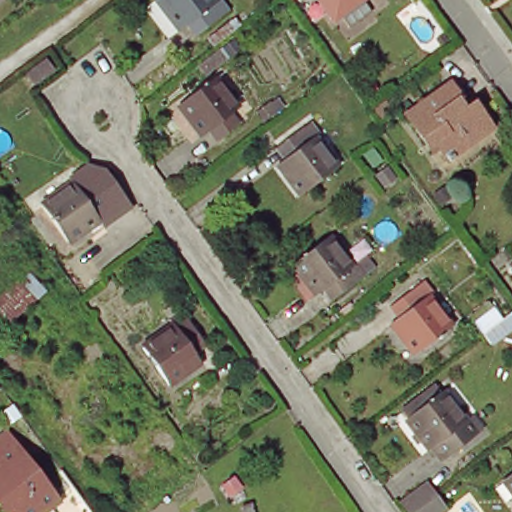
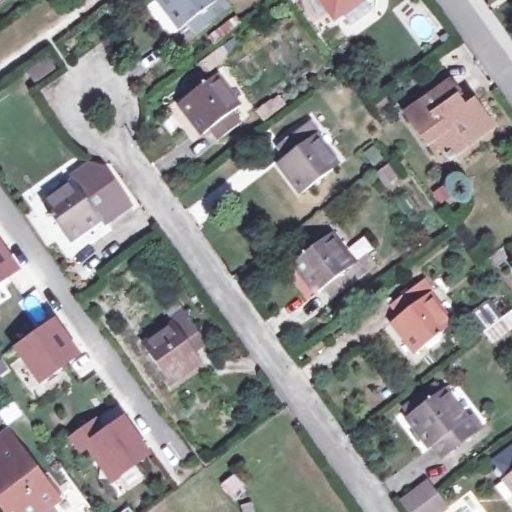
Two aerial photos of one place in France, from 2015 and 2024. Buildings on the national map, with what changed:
unchanged [(181,29),(159,0),(216,0),(217,1),(218,0),(223,0),(231,11),(196,36),(187,23),(181,29)]
unchanged [(352,30),(343,19),(337,23),(321,0),(370,0),(365,3),(374,14),(352,30)]
unchanged [(207,124),(185,93),(220,67),(243,97),(237,101),(247,113),(222,131),(213,119),(207,124)]
unchanged [(435,151),(407,112),(452,82),(462,96),(458,98),(465,107),(476,100),(496,128),(452,159),(442,146),(435,151)]
unchanged [(295,162),(287,151),(321,126),(330,137),(325,140),(348,172),(312,199),(288,166),(295,162)]
new [(97,211),(108,203),(83,168),(72,176),(70,173),(87,162),(105,167),(132,207),(105,226),(102,216),(97,211)]
unchanged [(68,240),(42,203),(75,180),(72,176),(83,168),(108,203),(97,211),(102,216),(68,240)]
unchanged [(325,229),(349,260),(353,257),(363,249),(372,262),(362,269),(327,295),(320,284),(312,289),(289,256),(325,229)]
new [(0,285),(0,243),(20,271),(0,285)]
unchanged [(410,322),(400,309),(434,284),(443,297),(439,299),(462,331),(426,357),(403,326),(410,322)]
unchanged [(192,362),(197,369),(165,392),(138,355),(170,333),(166,326),(162,320),(173,312),(177,318),(204,353),(192,362)]
new [(54,318),(80,355),(38,386),(12,348),(54,318)]
unchanged [(432,448),(408,415),(445,388),(467,420),(472,416),(482,428),(445,455),(437,444),(432,448)]
new [(66,438),(95,418),(102,430),(123,416),(151,456),(118,477),(109,484),(86,450),(78,455),(66,438)]
unchanged [(0,467),(0,442),(16,430),(67,499),(49,512),(24,512),(12,495),(5,500),(0,492),(0,474),(3,471),(0,467)]
new [(493,461),(512,446),(512,472),(505,477),(493,461)]
unchanged [(508,478),(512,475),(512,483),(508,478)]
unchanged [(427,481),(437,494),(447,508),(441,512),(411,512),(402,499),(427,481)]

